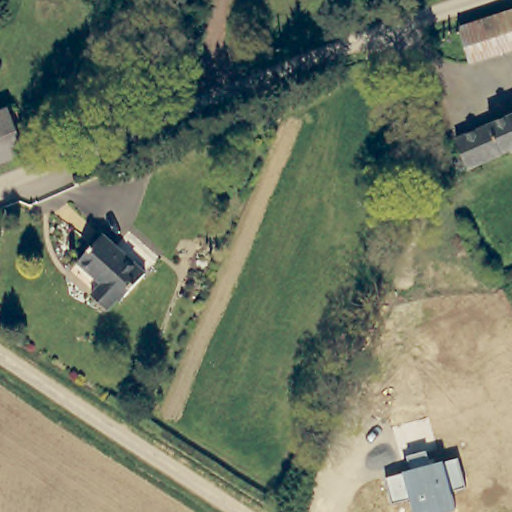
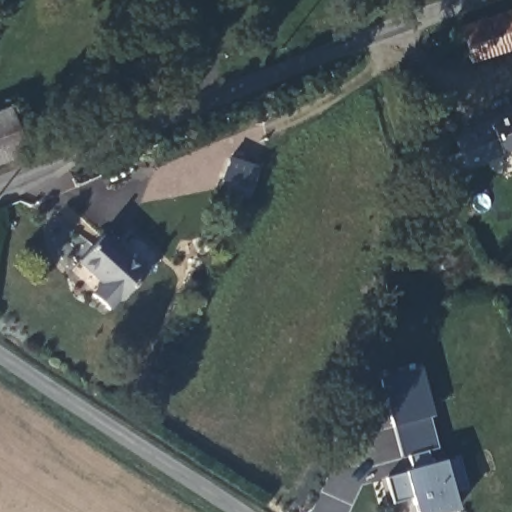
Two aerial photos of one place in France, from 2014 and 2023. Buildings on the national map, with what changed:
unchanged [(512,10),(512,50),(466,64),(453,27),(495,15),(512,10)]
unchanged [(11,133),(45,120),(53,140),(19,153),(0,160),(0,112),(2,111),(11,133)]
unchanged [(452,154),(461,149),(456,138),(512,116),(512,150),(460,171),(452,154)]
new [(250,200),(219,188),(231,157),(260,167),(250,200)]
unchanged [(146,274),(122,300),(119,297),(108,308),(93,293),(101,283),(76,262),(101,233),(146,274)]
new [(405,457),(401,458),(392,428),(381,378),(422,368),(433,416),(438,448),(428,450),(405,457)]
unchanged [(456,511),(453,512),(414,512),(410,497),(393,502),(386,477),(405,472),(408,470),(405,457),(428,450),(432,465),(446,461),(460,458),(467,486),(451,491),(456,511)]

